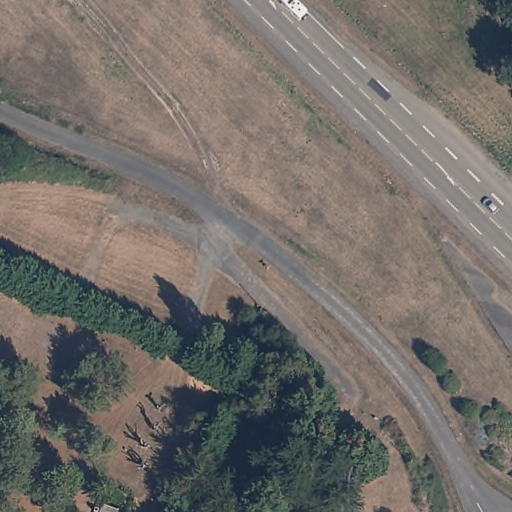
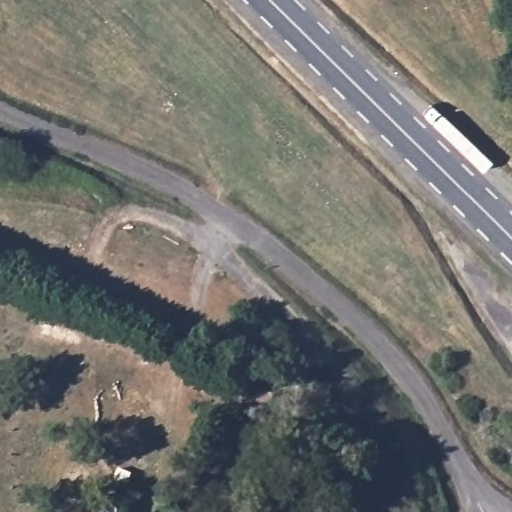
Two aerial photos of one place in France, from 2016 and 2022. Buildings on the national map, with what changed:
[]

